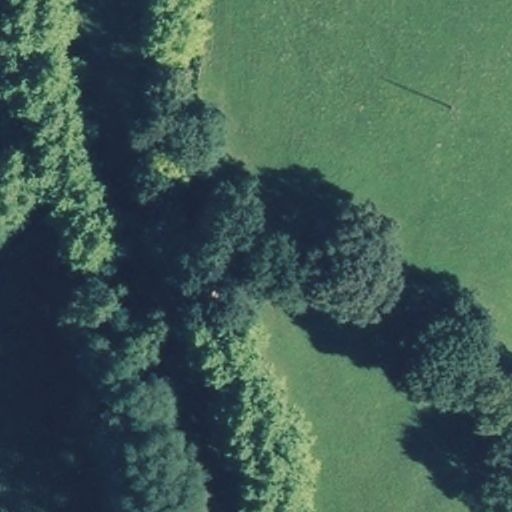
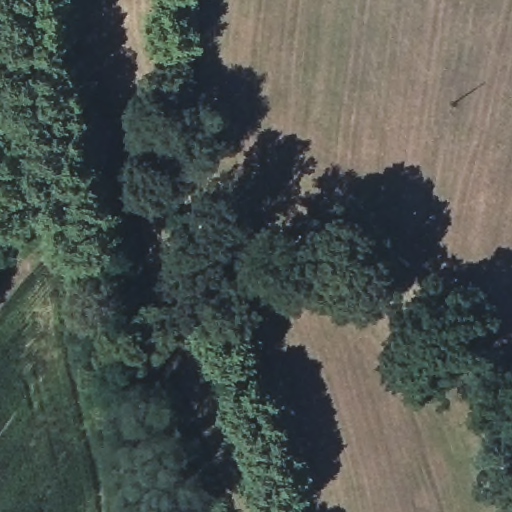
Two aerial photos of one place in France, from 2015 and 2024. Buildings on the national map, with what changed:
[]

